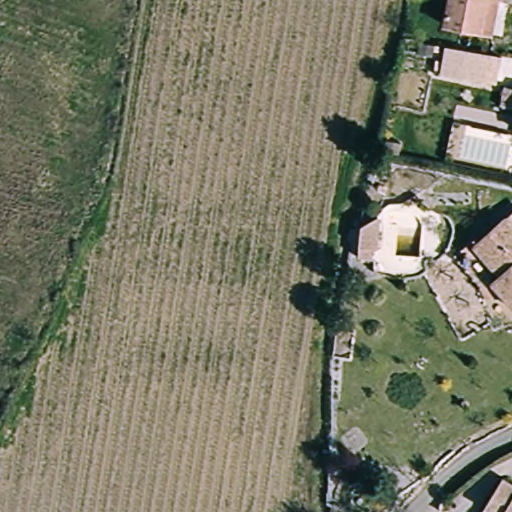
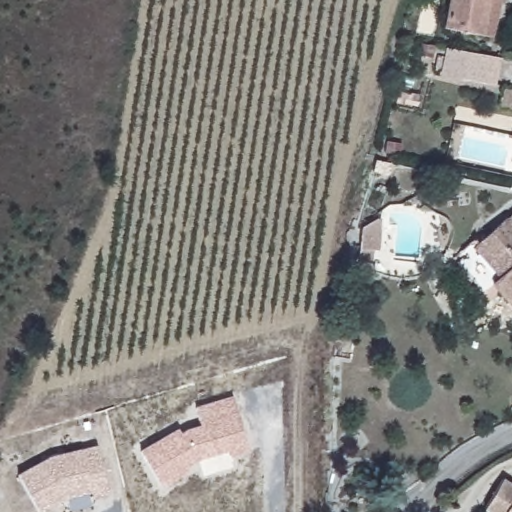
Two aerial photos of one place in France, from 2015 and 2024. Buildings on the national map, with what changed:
unchanged [(444,22),(449,0),(487,0),(480,30),(444,22)]
new [(502,56),(496,85),(439,74),(445,45),(502,56)]
unchanged [(477,245),(506,216),(512,223),(512,296),(497,281),(505,273),(477,245)]
unchanged [(370,246),(367,259),(357,257),(363,228),(380,217),(375,246),(370,246)]
new [(162,488),(140,450),(177,428),(179,432),(186,428),(200,424),(195,406),(231,395),(249,451),(231,457),(228,450),(198,459),(188,466),(191,471),(162,488)]
new [(44,512),(39,512),(17,474),(50,456),(97,445),(110,496),(93,500),(91,492),(72,496),(44,512)]
unchanged [(495,499),(512,509),(512,512),(487,512),(495,499)]

